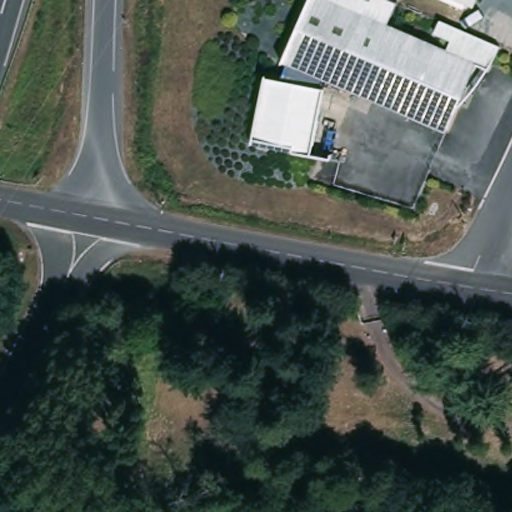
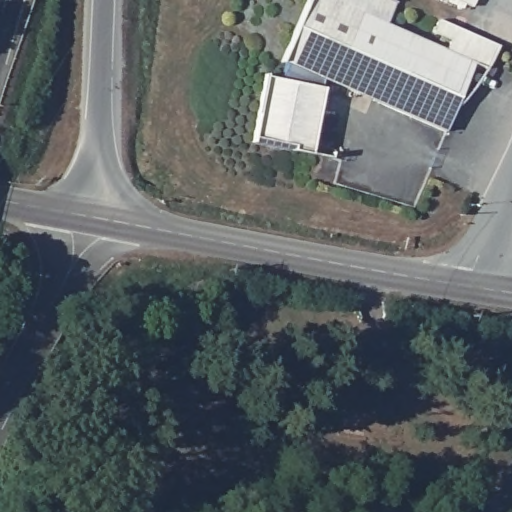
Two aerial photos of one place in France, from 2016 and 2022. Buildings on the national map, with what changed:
unchanged [(430,41),(482,64),(467,99),(452,132),(337,82),(325,77),(312,71),(285,60),(311,0),(336,0),(367,14),(430,41)]
unchanged [(462,0),(478,0),(475,5),(462,0)]
unchanged [(500,47),(491,67),(482,64),(430,41),(440,20),(500,47)]
unchanged [(325,77),(322,89),(308,155),(251,142),(263,79),(280,81),(285,60),(325,77)]

